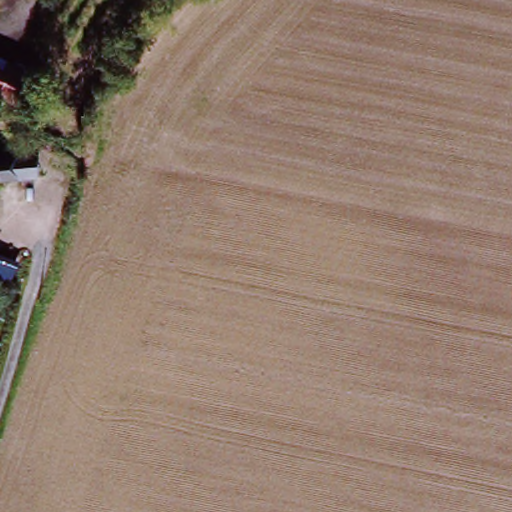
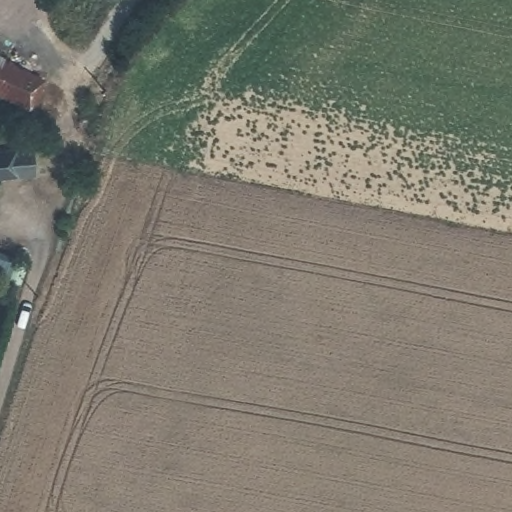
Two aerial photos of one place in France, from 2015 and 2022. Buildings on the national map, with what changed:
unchanged [(38,95),(28,112),(0,98),(0,60),(5,63),(44,83),(38,95)]
unchanged [(15,166),(0,168),(0,144),(14,144),(15,166)]

